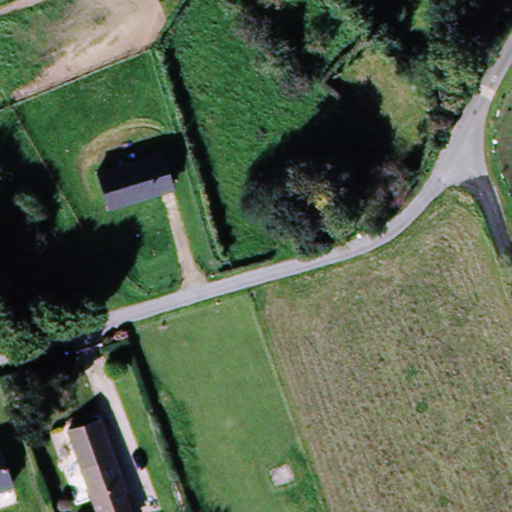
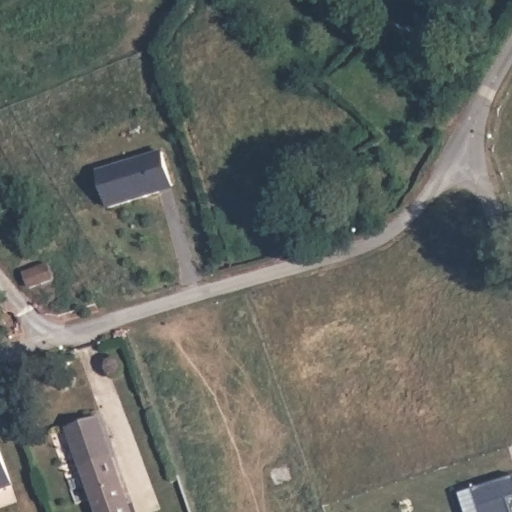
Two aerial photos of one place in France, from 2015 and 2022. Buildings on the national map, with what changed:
unchanged [(162,152),(172,189),(108,208),(97,172),(162,152)]
unchanged [(72,433),(102,424),(115,463),(85,475),(72,433)]
unchanged [(0,487),(0,439),(1,439),(13,482),(0,487)]
unchanged [(133,512),(98,512),(85,475),(115,463),(133,512)]
new [(511,512),(480,512),(473,490),(512,477),(512,497),(507,499),(511,512)]

